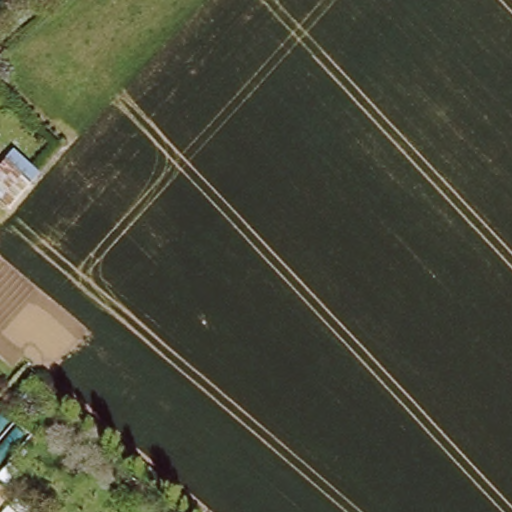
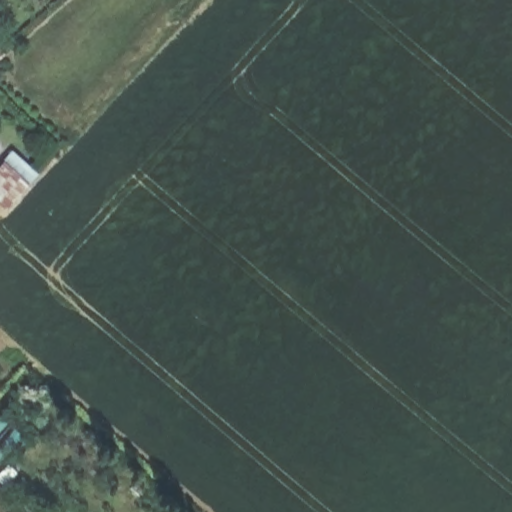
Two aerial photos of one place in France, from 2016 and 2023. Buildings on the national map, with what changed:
unchanged [(0,166),(15,150),(40,175),(11,210),(0,203),(0,166)]

